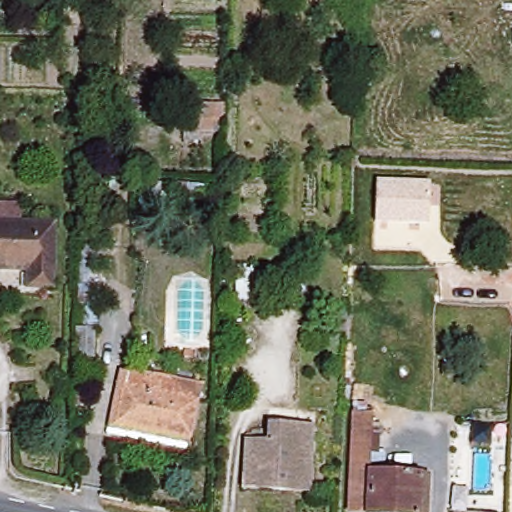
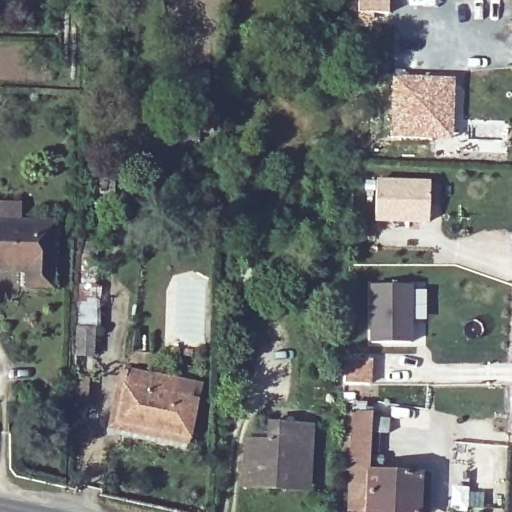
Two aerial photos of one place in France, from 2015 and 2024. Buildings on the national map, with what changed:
new [(389,0),(388,14),(356,12),(357,0),(389,0)]
new [(392,75),(455,77),(453,138),(389,137),(392,75)]
unchanged [(183,103),(221,104),(221,123),(219,123),(215,137),(183,134),(183,103)]
unchanged [(136,176),(211,176),(210,207),(136,206),(136,176)]
unchanged [(429,182),(429,224),(374,221),(376,180),(429,182)]
unchanged [(48,287),(26,286),(26,271),(0,270),(0,222),(52,225),(48,287)]
unchanged [(84,243),(96,244),(93,286),(100,287),(96,334),(93,334),(90,359),(72,358),(84,243)]
unchanged [(233,263),(255,264),(255,299),(232,297),(233,263)]
new [(366,286),(405,288),(404,345),(364,344),(366,286)]
unchanged [(181,439),(112,425),(120,386),(188,400),(181,439)]
unchanged [(350,420),(366,420),(363,477),(410,482),(410,512),(343,512),(350,420)]
unchanged [(286,489),(262,488),(242,486),(246,439),(268,441),(270,422),(313,426),(309,481),(308,491),(286,489)]

